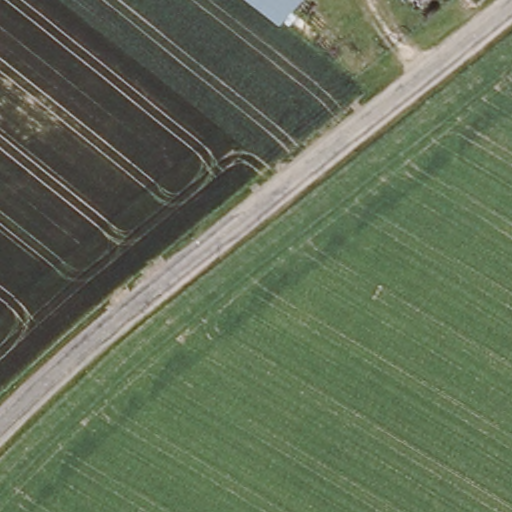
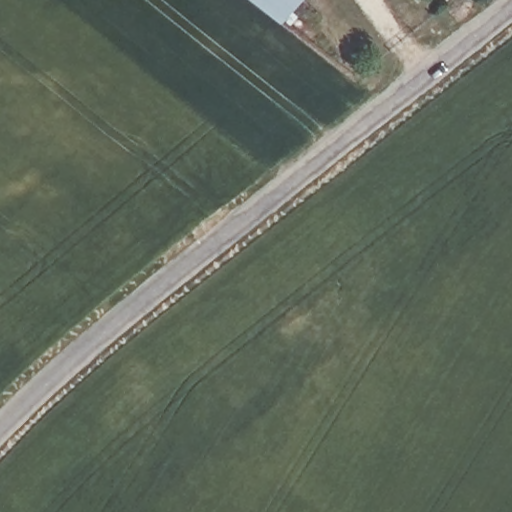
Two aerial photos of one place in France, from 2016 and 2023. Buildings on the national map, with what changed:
unchanged [(248,0),(291,0),(274,21),(248,0)]

